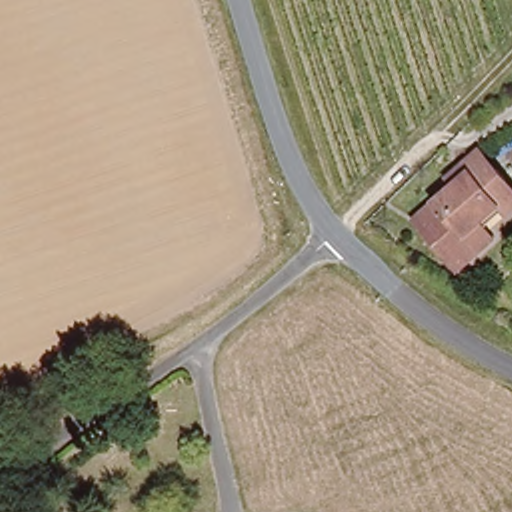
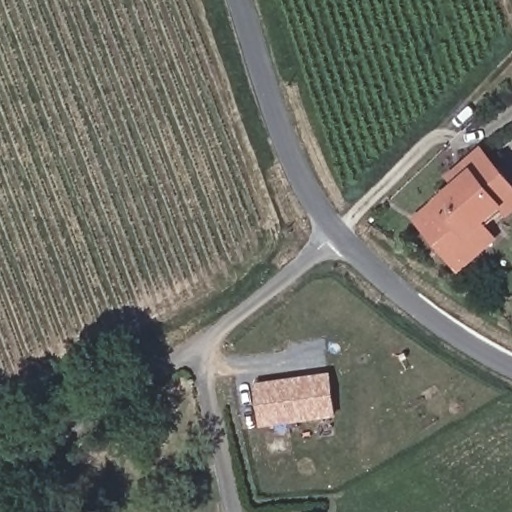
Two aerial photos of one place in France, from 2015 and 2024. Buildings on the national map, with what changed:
unchanged [(451,265),(419,226),(461,192),(455,184),(488,157),(512,186),(512,219),(510,220),(507,216),(497,224),(488,232),(496,243),(480,257),(459,275),(451,265)]
new [(262,423),(256,384),(327,374),(333,414),(262,423)]

